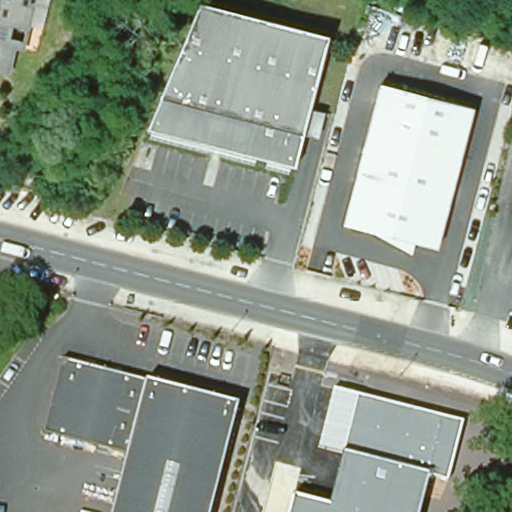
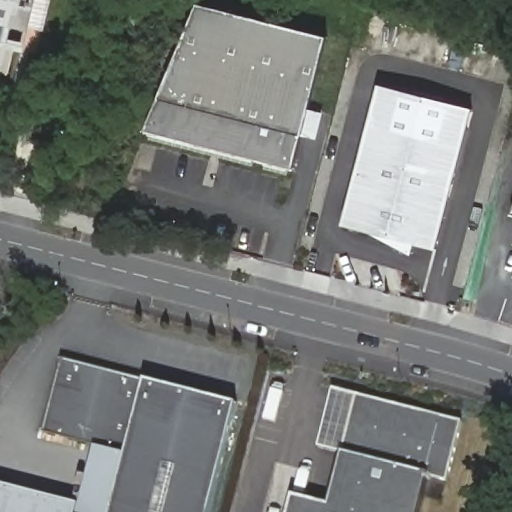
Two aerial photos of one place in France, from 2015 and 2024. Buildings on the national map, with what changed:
unchanged [(10,60),(0,58),(0,0),(33,0),(27,27),(24,39),(15,37),(10,60)]
unchanged [(297,132),(289,165),(141,127),(198,2),(323,34),(304,107),(318,111),(312,137),(297,132)]
unchanged [(417,242),(413,256),(374,231),(343,225),(382,83),(475,107),(437,247),(417,242)]
unchanged [(512,203),(512,214),(508,212),(512,203)]
unchanged [(512,268),(512,275),(510,275),(512,268)]
unchanged [(129,455),(46,431),(65,358),(239,402),(211,512),(113,512),(129,455)]
unchanged [(293,495),(331,506),(343,453),(343,452),(319,446),(332,387),(463,420),(447,479),(432,475),(430,473),(419,512),(289,512),(293,495)]
new [(80,505),(96,445),(129,455),(113,512),(0,512),(0,483),(80,505)]

